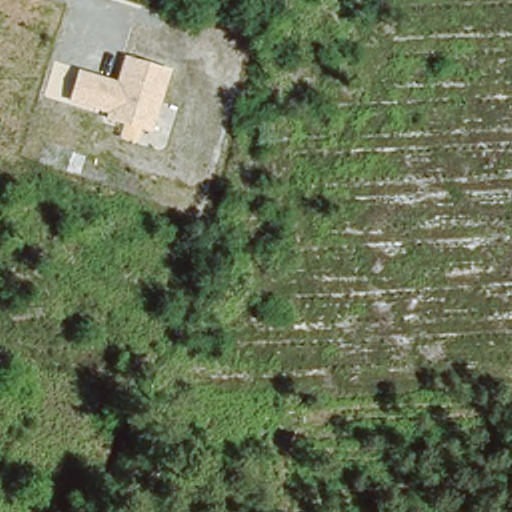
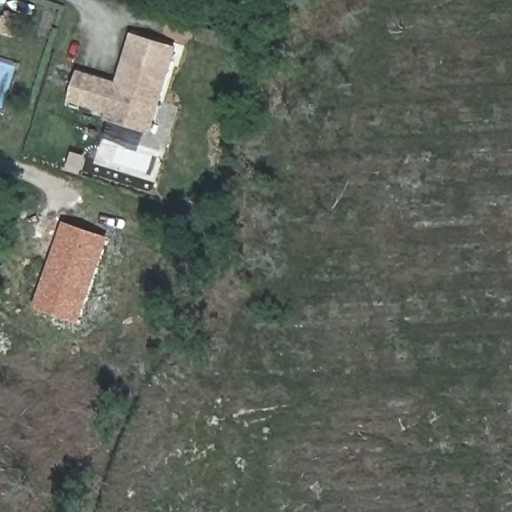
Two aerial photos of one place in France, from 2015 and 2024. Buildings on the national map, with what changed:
new [(126,57),(133,34),(178,48),(172,70),(126,57)]
unchanged [(126,57),(172,70),(151,133),(106,121),(107,114),(70,104),(81,70),(117,81),(126,57)]
new [(65,222),(107,237),(76,324),(35,309),(65,222)]

